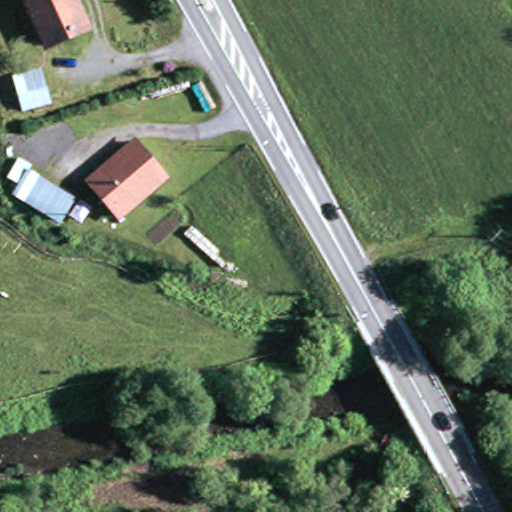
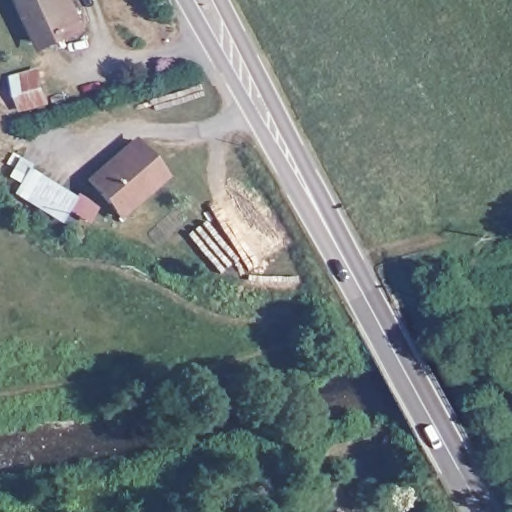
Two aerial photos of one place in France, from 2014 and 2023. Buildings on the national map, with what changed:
unchanged [(44,44),(22,0),(72,0),(84,25),(44,44)]
unchanged [(51,102),(26,108),(18,81),(43,74),(51,102)]
unchanged [(165,176),(122,218),(89,183),(133,141),(165,176)]
unchanged [(61,217),(15,191),(29,171),(75,198),(61,217)]

